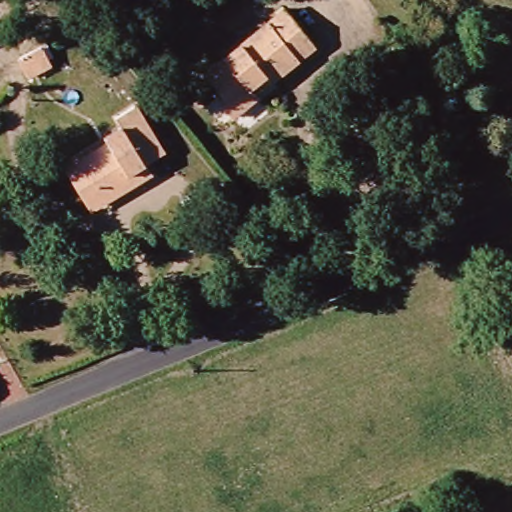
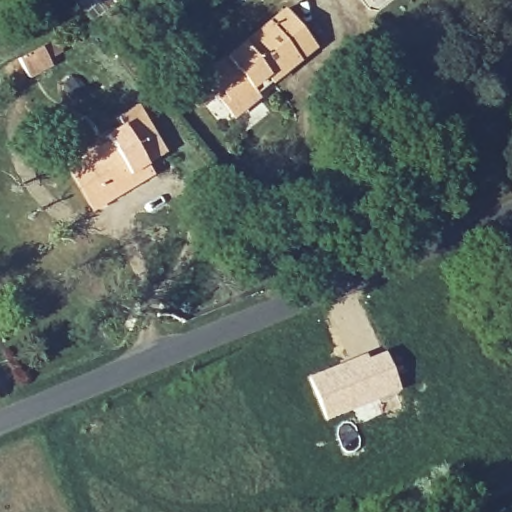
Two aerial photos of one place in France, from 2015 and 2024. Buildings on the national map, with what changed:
unchanged [(75,3),(73,0),(79,0),(75,3)]
unchanged [(223,101),(210,83),(284,16),(314,49),(272,86),(267,80),(254,92),(260,102),(243,118),(229,99),(223,101)]
unchanged [(125,176),(99,190),(80,161),(110,144),(105,135),(125,123),(119,113),(137,103),(165,153),(142,166),(149,179),(131,189),(125,176)]
unchanged [(66,169),(80,161),(99,190),(125,176),(131,189),(89,210),(66,169)]
new [(366,360),(384,353),(400,389),(324,421),(307,377),(364,354),(366,360)]

